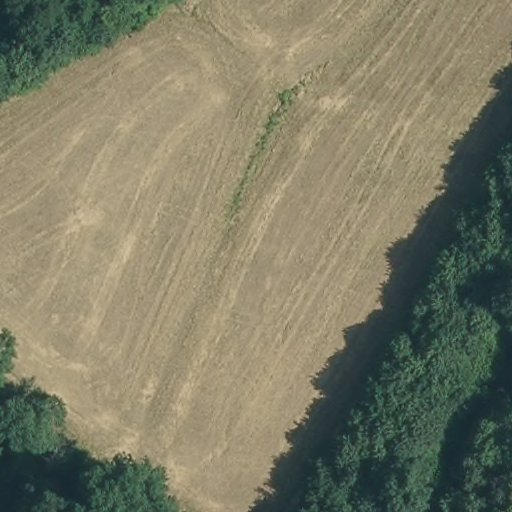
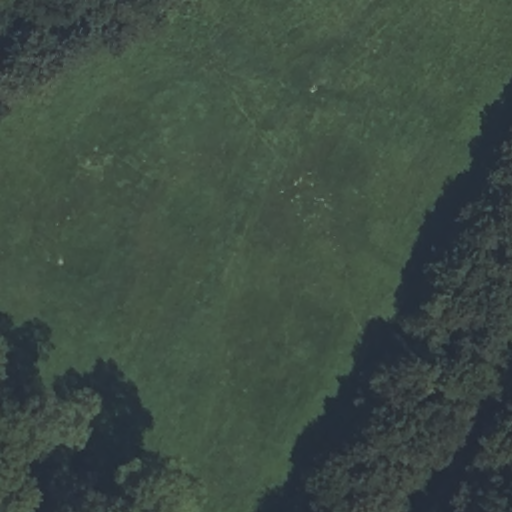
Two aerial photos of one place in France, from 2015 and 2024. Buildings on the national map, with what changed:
[]

